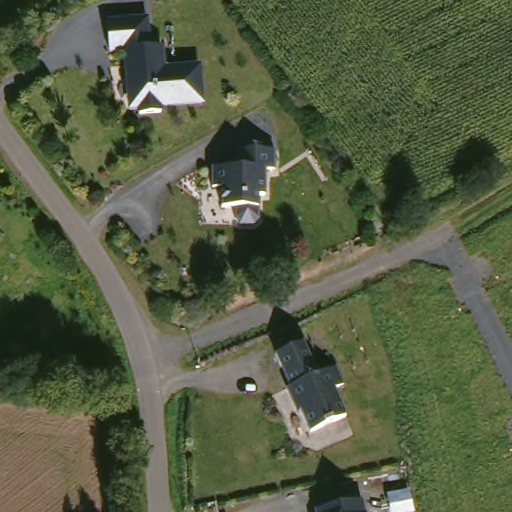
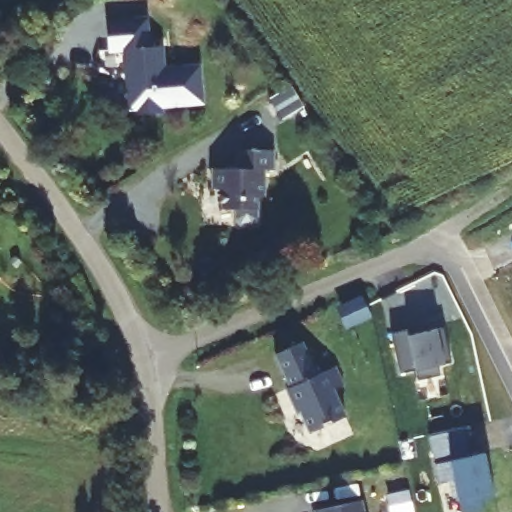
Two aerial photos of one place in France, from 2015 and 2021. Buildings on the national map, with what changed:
unchanged [(145,20),(148,49),(160,48),(162,71),(198,67),(201,104),(160,108),(161,114),(139,116),(137,101),(129,101),(124,52),(108,54),(105,24),(145,20)]
unchanged [(284,156),(284,175),(274,175),(274,201),(267,201),(266,225),(261,230),(248,229),(243,224),(243,213),(229,213),(229,193),(220,193),(221,173),(246,173),(246,155),(284,156)]
new [(408,331),(409,336),(436,330),(444,328),(451,364),(444,364),(438,365),(441,376),(418,381),(416,370),(416,367),(399,372),(393,334),(408,331)]
unchanged [(316,379),(334,370),(342,388),(331,393),(344,420),(309,436),(296,409),(293,410),(285,392),(289,391),(274,358),(301,346),(316,379)]
new [(453,499),(449,480),(438,482),(428,435),(464,428),(471,457),(486,455),(493,491),(494,499),(480,501),(483,511),(480,512),(461,512),(459,496),(453,499)]
unchanged [(309,512),(309,507),(364,502),(364,512),(309,512)]

